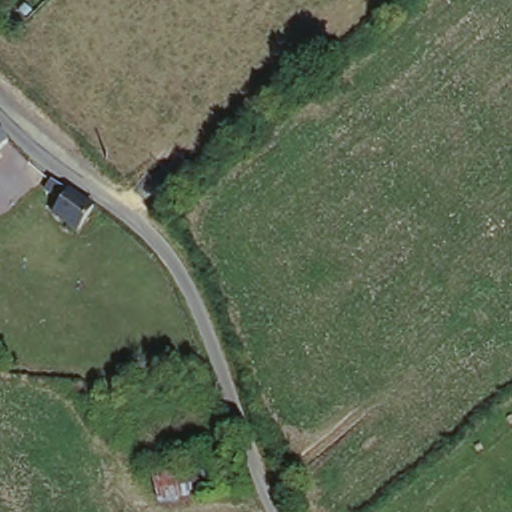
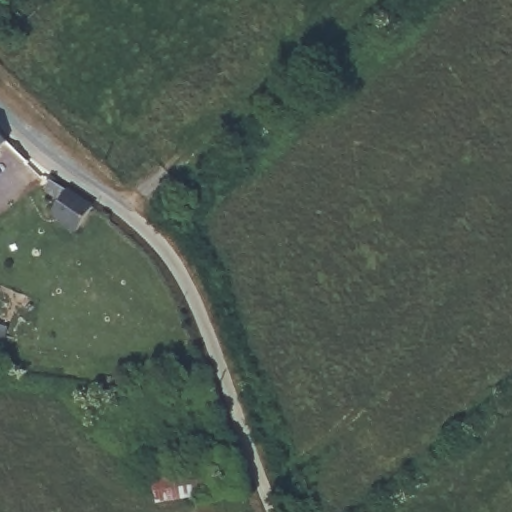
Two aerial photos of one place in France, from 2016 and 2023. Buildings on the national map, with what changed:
unchanged [(0,147),(0,135),(6,142),(0,147)]
unchanged [(49,212),(59,197),(44,185),(48,177),(91,209),(75,231),(49,212)]

